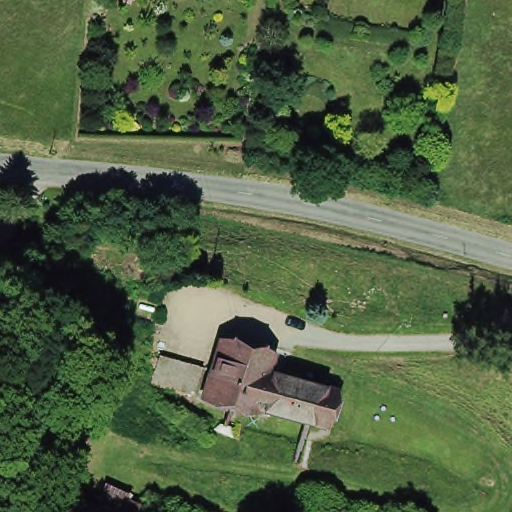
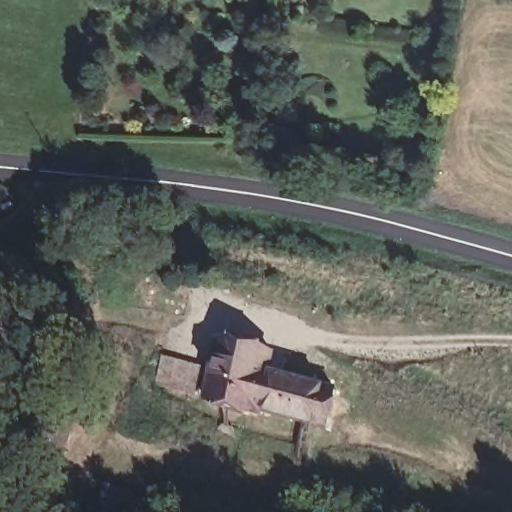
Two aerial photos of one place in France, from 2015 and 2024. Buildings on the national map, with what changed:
unchanged [(325,425),(258,406),(257,409),(202,394),(217,335),(273,351),(275,347),(288,351),(281,372),(336,387),(325,425)]
unchanged [(196,393),(152,379),(160,351),(203,363),(196,393)]
unchanged [(140,512),(89,512),(93,500),(102,504),(108,486),(128,494),(127,497),(143,502),(140,512)]

